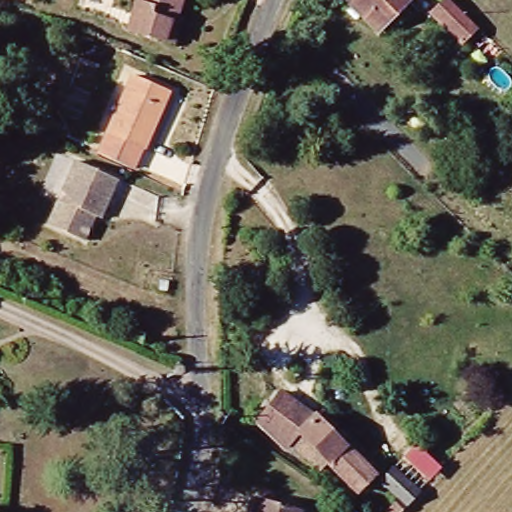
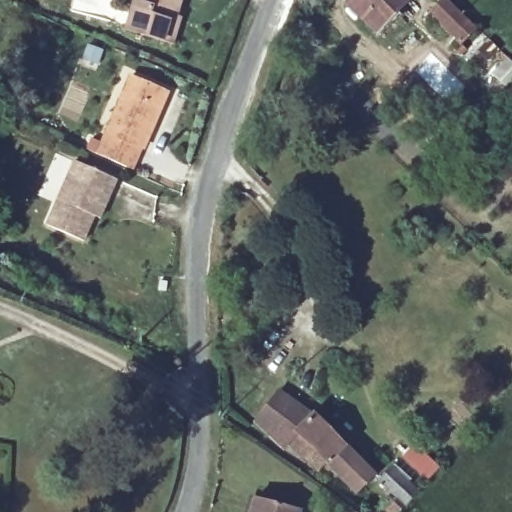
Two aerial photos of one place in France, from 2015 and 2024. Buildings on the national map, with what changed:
unchanged [(172,44),(162,41),(126,30),(135,0),(180,0),(175,18),(179,20),(172,44)]
unchanged [(349,0),(407,0),(376,31),(347,3),(349,0)]
unchanged [(474,29),(460,43),(430,14),(444,0),(445,0),(474,29)]
unchanged [(141,150),(139,149),(130,169),(127,168),(97,155),(131,76),(167,91),(141,150)]
unchanged [(94,217),(84,239),(47,222),(75,163),(117,182),(105,208),(99,220),(94,217)]
unchanged [(273,387),(307,412),(308,411),(367,470),(351,486),(322,457),(313,466),(299,451),(298,452),(283,437),(278,443),(250,418),(273,387)]
unchanged [(387,512),(383,509),(386,505),(385,504),(393,495),(374,477),(387,463),(413,487),(389,512),(387,512)]
unchanged [(251,512),(255,498),(300,510),(299,512),(251,512)]

